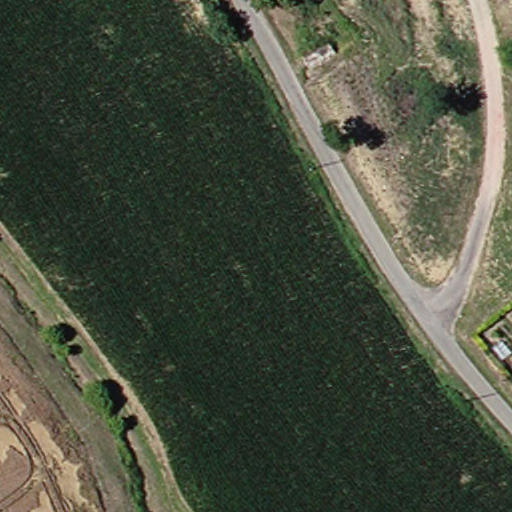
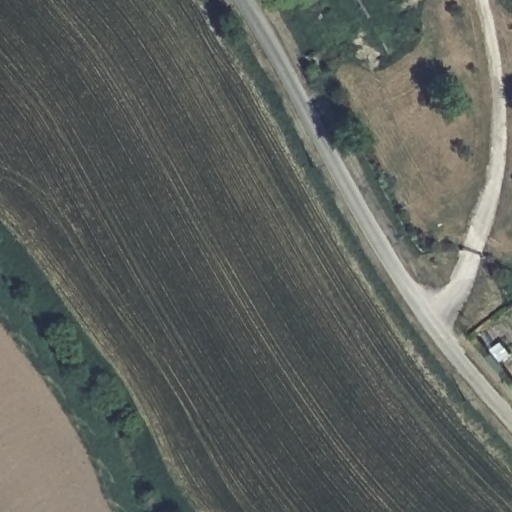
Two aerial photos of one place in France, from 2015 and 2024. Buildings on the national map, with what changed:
[]

